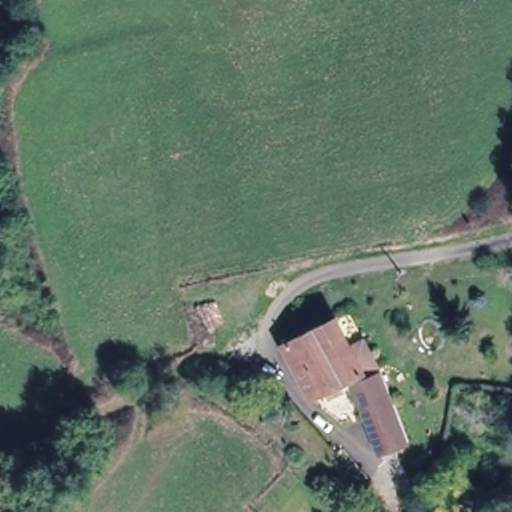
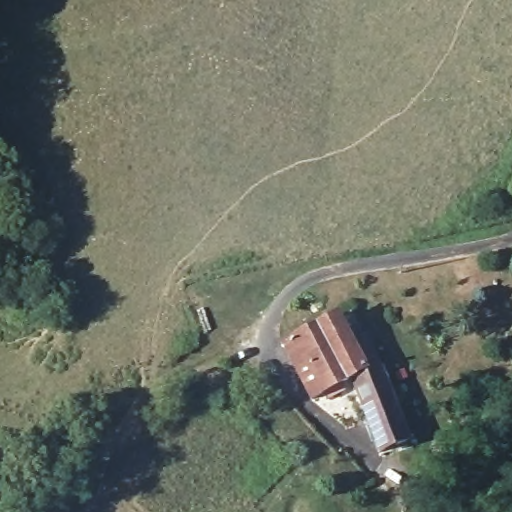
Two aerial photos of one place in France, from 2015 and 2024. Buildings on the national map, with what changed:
unchanged [(361,364),(313,396),(282,346),(332,316),(361,364)]
unchanged [(351,380),(382,370),(393,366),(418,439),(406,443),(376,454),(351,380)]
unchanged [(340,452),(323,466),(303,444),(319,428),(340,452)]

